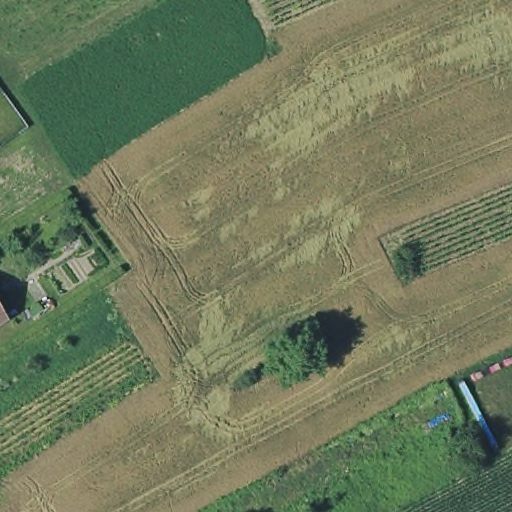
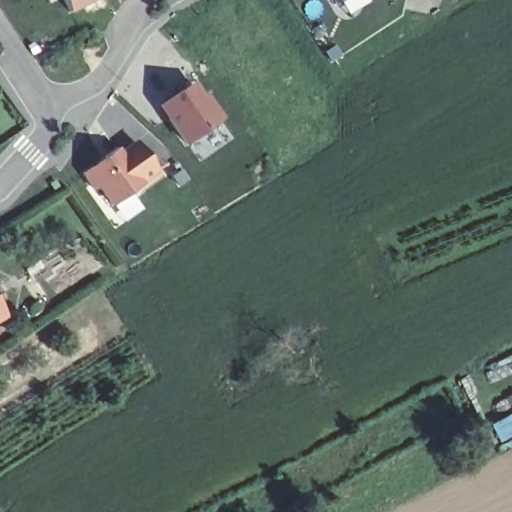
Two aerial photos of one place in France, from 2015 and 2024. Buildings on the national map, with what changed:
new [(61,0),(97,0),(68,14),(61,0)]
new [(331,0),(338,0),(333,3),(331,0)]
new [(157,107),(192,82),(203,99),(207,95),(224,119),(185,145),(157,107)]
new [(143,184),(110,208),(97,190),(94,192),(81,174),(119,147),(121,151),(136,140),(160,172),(143,184)]
unchanged [(0,305),(2,307),(5,312),(0,315),(0,305)]

